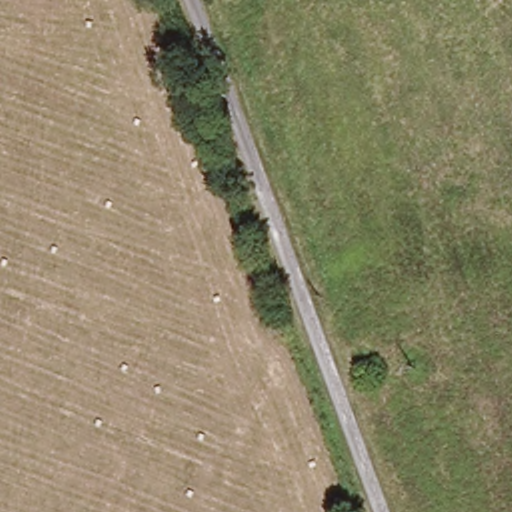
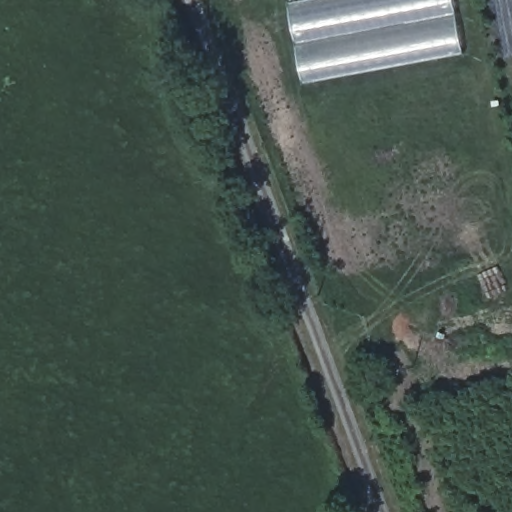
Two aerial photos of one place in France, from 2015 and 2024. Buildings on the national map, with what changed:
new [(305,80),(290,3),(309,0),(455,0),(465,51),(305,80)]

